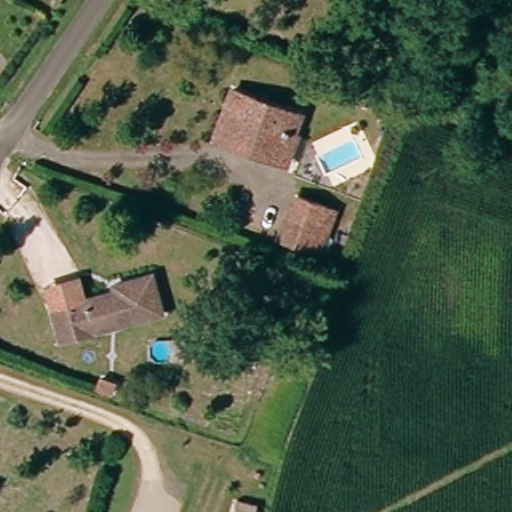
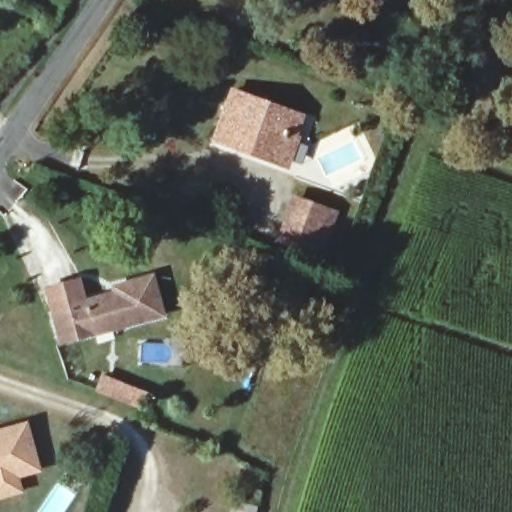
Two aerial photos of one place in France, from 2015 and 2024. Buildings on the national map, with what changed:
unchanged [(257,154),(259,149),(236,141),(235,144),(215,137),(234,89),(284,108),(300,114),(294,129),(281,163),(257,154)]
unchanged [(314,253),(284,241),(302,198),(332,210),(314,253)]
unchanged [(45,308),(40,285),(81,274),(86,297),(118,289),(117,280),(152,272),(159,305),(162,317),(128,326),(91,335),(54,345),(45,308)]
new [(41,471),(19,477),(23,492),(0,499),(0,428),(27,420),(41,471)]

